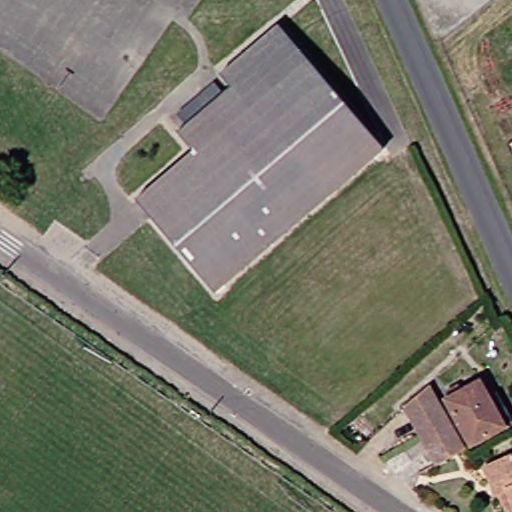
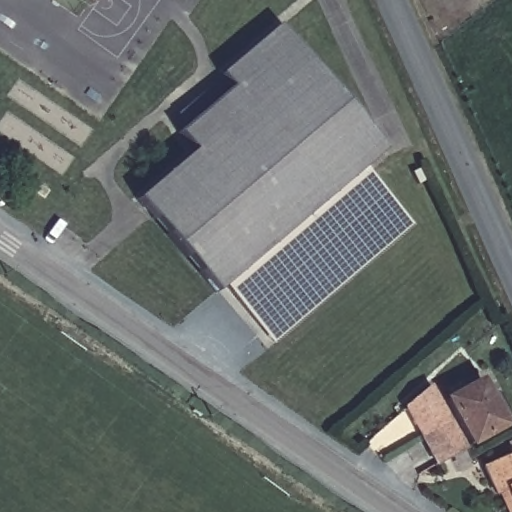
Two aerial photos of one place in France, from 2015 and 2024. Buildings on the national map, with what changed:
unchanged [(374,155),(198,291),(124,196),(181,147),(167,130),(224,83),(215,73),(275,25),(374,155)]
new [(271,347),(215,278),(361,165),(411,226),(271,347)]
unchanged [(433,397),(465,380),(472,393),(481,389),(496,421),(487,426),(455,443),(433,397)]
unchanged [(406,437),(393,407),(421,392),(436,422),(406,437)]
unchanged [(436,422),(450,450),(420,464),(406,437),(436,422)]
unchanged [(496,494),(483,499),(476,485),(470,471),(512,452),(512,512),(504,512),(496,494)]

